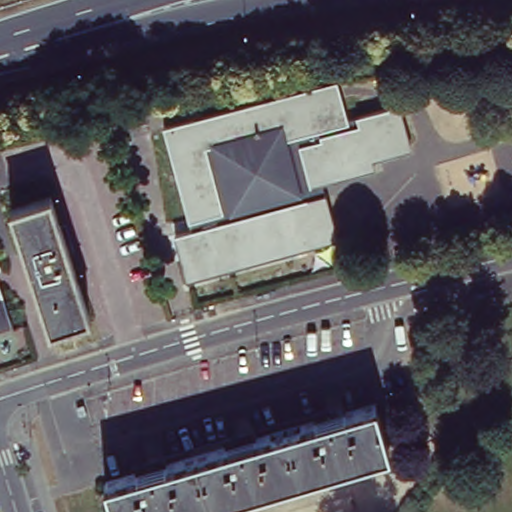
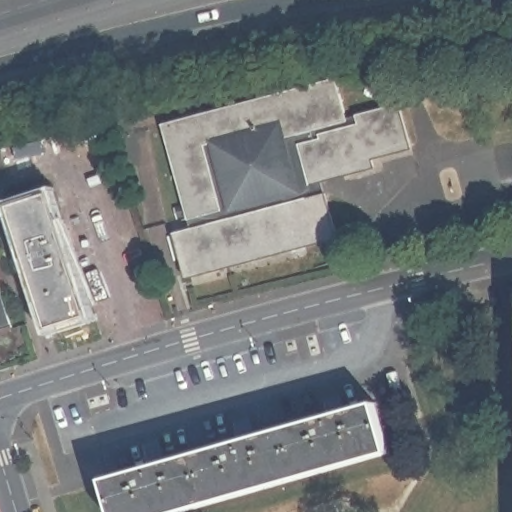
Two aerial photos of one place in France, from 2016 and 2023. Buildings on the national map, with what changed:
unchanged [(336,80),(347,118),(399,104),(410,146),(372,156),(375,166),(322,180),(337,237),(187,277),(175,234),(193,228),(165,125),(336,80)]
unchanged [(59,326),(55,328),(17,207),(54,195),(65,227),(74,254),(94,315),(89,317),(59,326)]
unchanged [(2,262),(0,263),(0,257),(2,262)]
unchanged [(12,318),(0,323),(0,281),(12,318)]
unchanged [(345,411),(375,402),(389,451),(177,512),(116,512),(107,479),(150,466),(345,411)]

